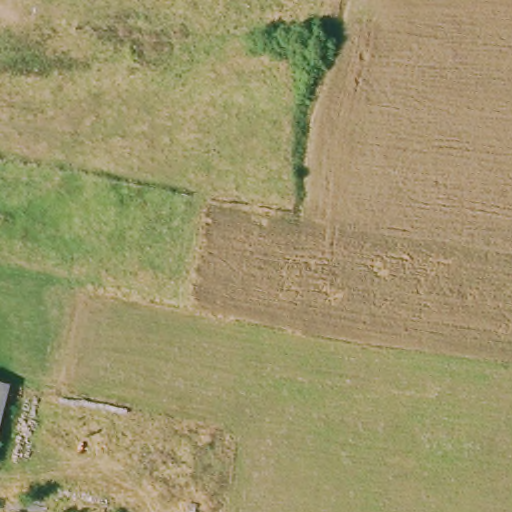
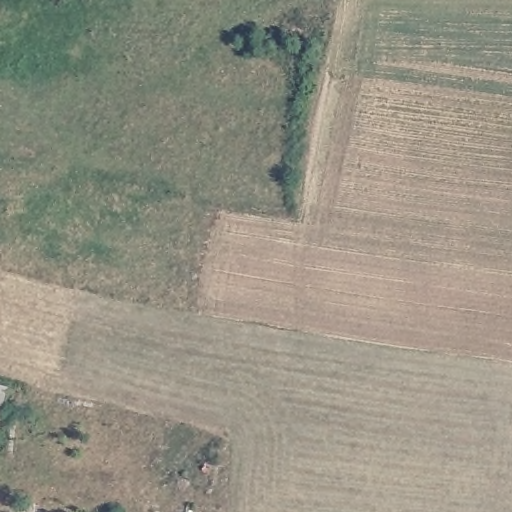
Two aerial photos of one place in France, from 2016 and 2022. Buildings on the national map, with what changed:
unchanged [(0,388),(9,390),(0,437),(0,388)]

